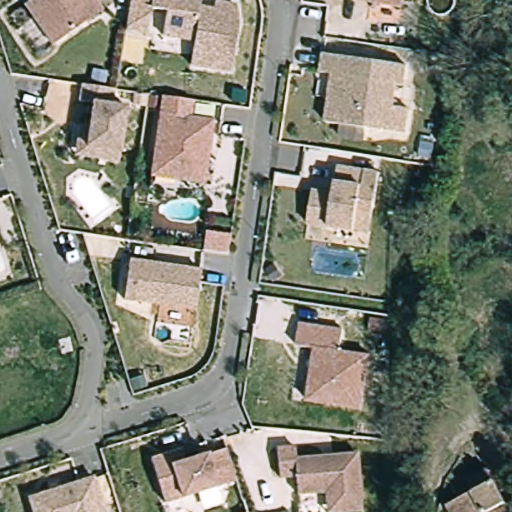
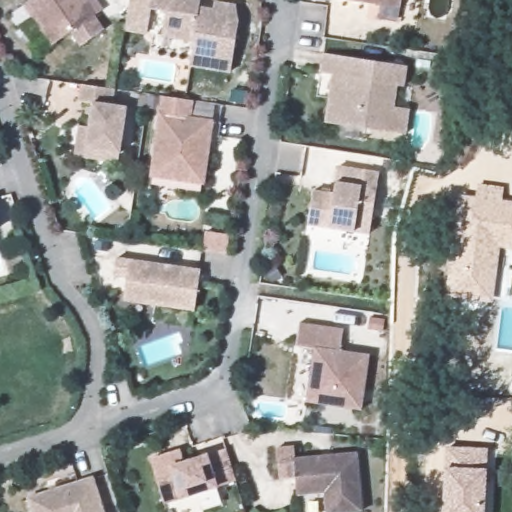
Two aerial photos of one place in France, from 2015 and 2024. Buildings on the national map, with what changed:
unchanged [(99,0),(104,7),(54,43),(25,2),(28,0),(99,0)]
unchanged [(233,70),(192,63),(197,39),(179,35),(165,33),(169,9),(153,5),(149,30),(129,26),(130,22),(134,2),(134,0),(235,0),(242,21),(233,70)]
unchanged [(379,0),(400,0),(399,4),(379,0)]
unchanged [(330,70),(318,68),(321,49),(405,63),(401,84),(394,83),(391,104),(406,107),(401,133),(322,118),(326,93),(330,70)]
unchanged [(72,153),(76,123),(86,124),(89,100),(76,99),(78,81),(111,86),(112,86),(110,102),(123,104),(117,149),(116,159),(72,153)]
unchanged [(149,173),(151,163),(163,93),(177,94),(192,97),(190,114),(190,115),(212,119),(203,172),(202,182),(149,173)]
unchanged [(357,234),(295,226),(302,185),(323,189),(328,161),(381,169),(375,212),(372,236),(357,234)]
new [(477,183),(504,185),(502,199),(512,200),(512,250),(500,249),(493,302),(446,294),(458,195),(476,197),(477,183)]
unchanged [(203,229),(222,232),(220,252),(200,249),(203,229)]
unchanged [(128,258),(199,268),(194,308),(123,298),(128,258)]
unchanged [(340,330),(337,352),(366,356),(359,409),(305,402),(312,349),(294,347),(297,324),(340,330)]
new [(321,426),(332,427),(331,434),(320,433),(321,426)]
unchanged [(325,489),(297,492),(296,474),(280,475),(277,445),(294,444),(295,456),(322,454),(333,453),(358,451),(362,509),(338,511),(327,512),(325,489)]
unchanged [(229,452),(237,478),(164,500),(151,456),(181,447),(185,459),(201,454),(207,452),(227,446),(229,452)]
unchanged [(482,464),(497,483),(504,506),(512,503),(512,512),(446,512),(443,501),(455,497),(468,492),(462,477),(482,464)]
unchanged [(28,496),(91,478),(101,512),(33,512),(28,496)]

